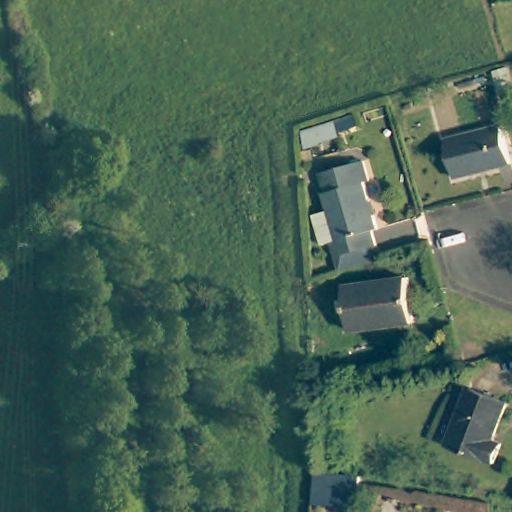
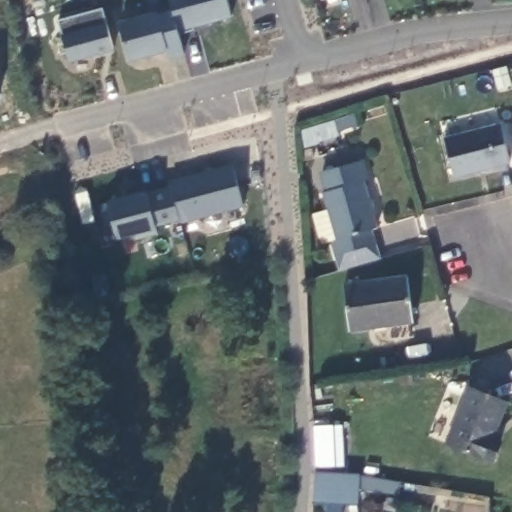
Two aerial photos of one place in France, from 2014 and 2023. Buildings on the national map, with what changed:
new [(180,34),(170,0),(229,0),(234,16),(180,34)]
new [(102,7),(115,49),(68,62),(56,20),(102,7)]
unchanged [(506,122),(512,145),(512,160),(459,172),(450,135),(506,122)]
unchanged [(331,268),(329,253),(326,239),(332,238),(323,191),(326,190),(322,170),(365,161),(369,182),(364,183),(374,228),(367,230),(371,244),(369,244),(373,259),(331,268)]
new [(108,204),(146,194),(169,185),(168,181),(232,164),(245,205),(156,227),(157,235),(135,240),(133,235),(117,239),(113,227),(104,229),(100,206),(108,204)]
unchanged [(407,280),(413,323),(350,331),(344,287),(407,280)]
unchanged [(507,401),(492,440),(503,444),(496,461),(448,442),(470,386),(507,401)]
new [(320,470),(354,476),(348,505),(319,500),(320,470)]

